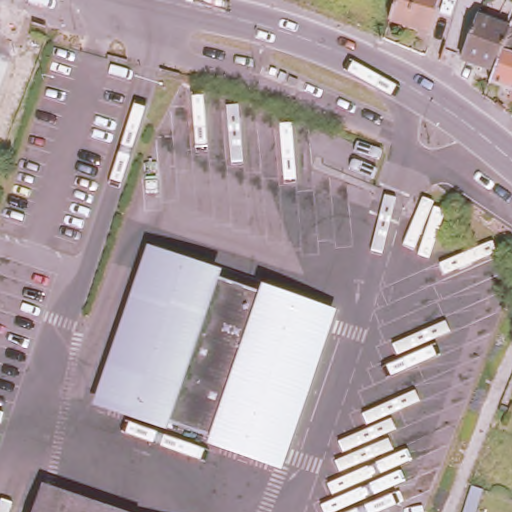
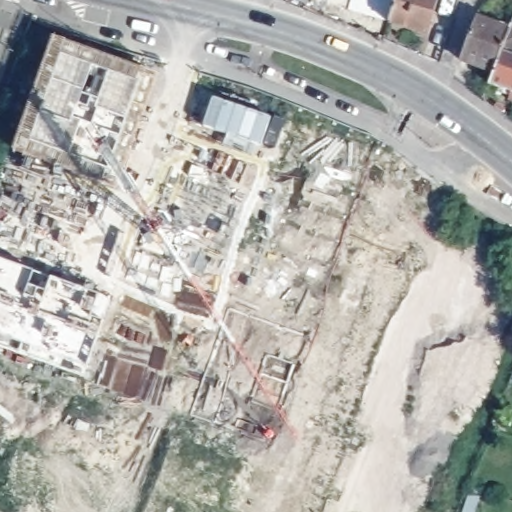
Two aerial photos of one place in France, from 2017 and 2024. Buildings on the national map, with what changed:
unchanged [(429,29),(389,16),(394,0),(438,0),(429,29)]
unchanged [(483,18),(512,30),(512,40),(507,54),(499,74),(466,60),(483,18)]
new [(118,191),(54,167),(47,182),(23,173),(31,159),(13,152),(53,37),(156,75),(118,191)]
unchanged [(499,74),(507,54),(512,55),(512,89),(496,83),(499,74)]
demolished [(333,312),(281,456),(103,394),(153,250),(333,312)]
new [(113,301),(84,378),(0,349),(0,259),(113,301)]
demolished [(139,512),(35,512),(46,480),(139,512)]
unchanged [(474,485),(483,487),(477,505),(474,512),(464,512),(468,502),(474,485)]

